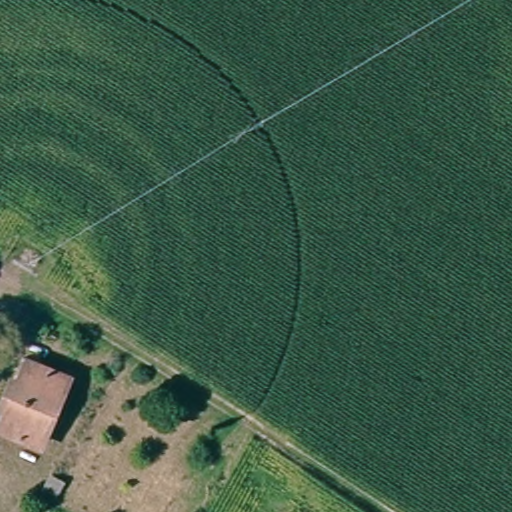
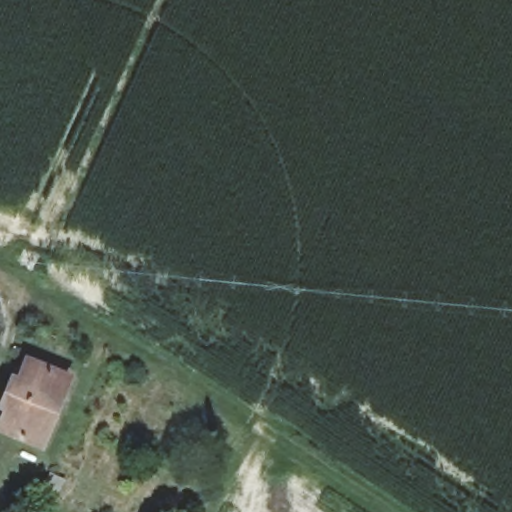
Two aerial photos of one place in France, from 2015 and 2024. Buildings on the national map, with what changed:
unchanged [(49,433),(11,415),(16,397),(15,396),(8,393),(15,372),(25,347),(36,352),(75,368),(49,433)]

